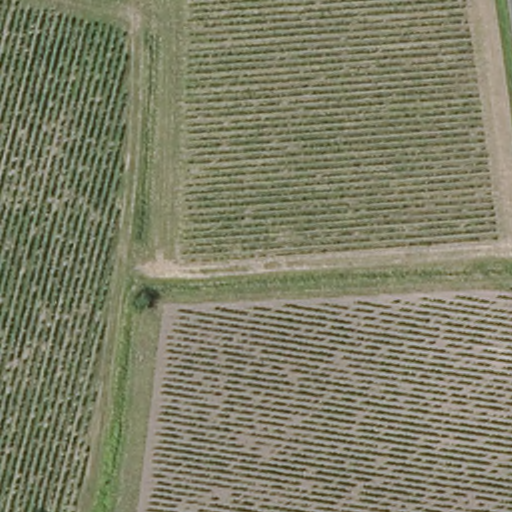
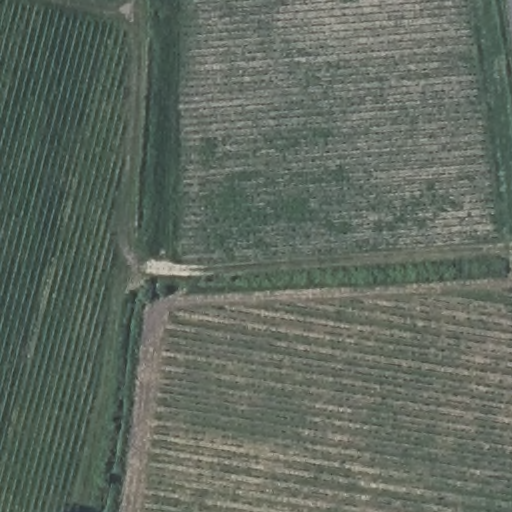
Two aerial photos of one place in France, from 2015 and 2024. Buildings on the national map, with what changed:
[]

